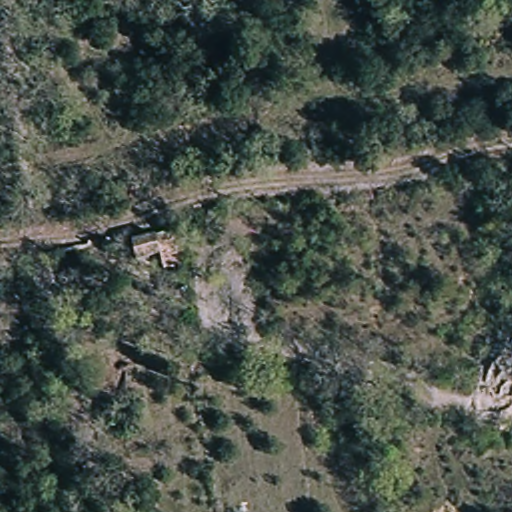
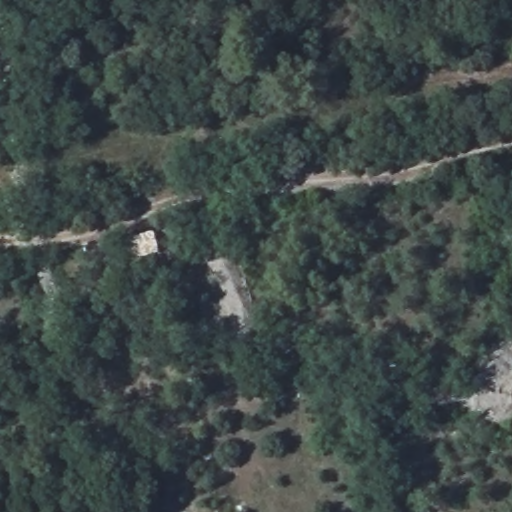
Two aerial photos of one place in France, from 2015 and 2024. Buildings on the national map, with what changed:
unchanged [(159,251),(136,257),(131,239),(156,233),(159,251)]

